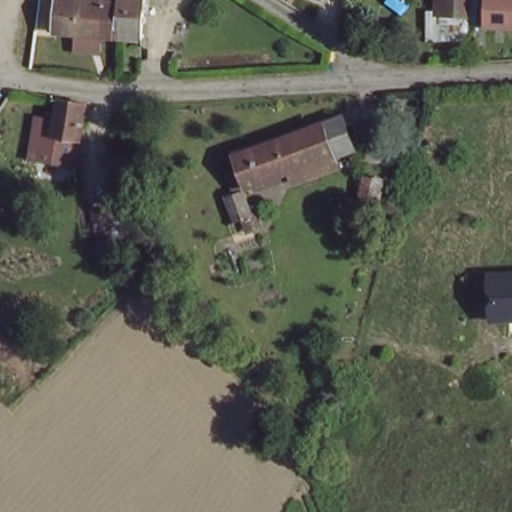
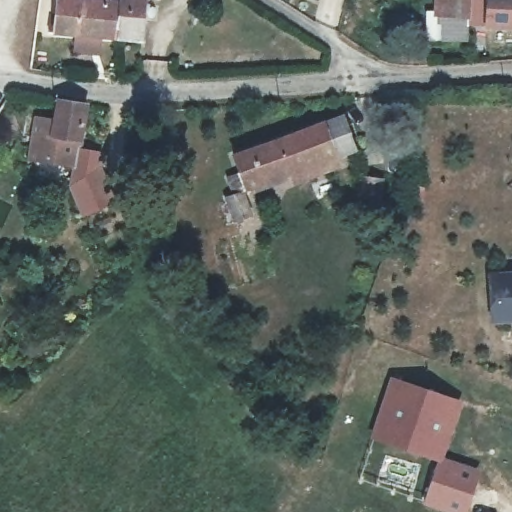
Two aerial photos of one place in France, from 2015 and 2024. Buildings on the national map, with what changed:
unchanged [(120,40),(103,39),(104,67),(73,67),(73,35),(58,34),(60,0),(121,0),(120,40)]
unchanged [(144,44),(120,40),(121,0),(149,0),(144,44)]
unchanged [(431,0),(481,0),(479,25),(459,22),(456,35),(428,31),(430,20),(431,0)]
unchanged [(479,25),(481,0),(512,0),(512,28),(479,25)]
unchanged [(80,162),(28,156),(34,112),(46,112),(49,100),(88,103),(80,162)]
unchanged [(306,130),(353,120),(362,154),(314,165),(306,130)]
unchanged [(246,182),(253,210),(238,212),(231,185),(235,184),(229,165),(242,163),(239,146),(306,130),(314,165),(246,182)]
unchanged [(350,217),(359,185),(377,190),(370,222),(350,217)]
unchanged [(97,217),(123,215),(129,246),(127,246),(100,249),(98,231),(97,217)]
unchanged [(497,317),(496,280),(512,279),(512,317),(497,317)]
new [(432,451),(376,433),(395,375),(451,395),(461,397),(442,455),(479,468),(465,511),(427,497),(441,455),(432,451)]

